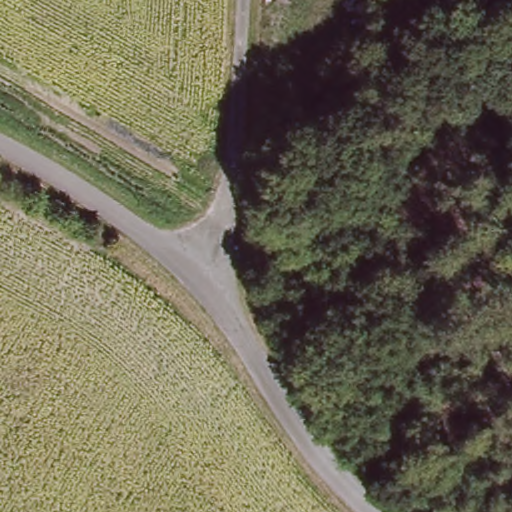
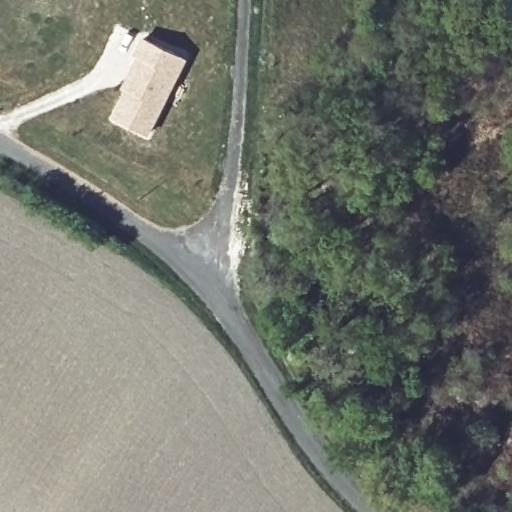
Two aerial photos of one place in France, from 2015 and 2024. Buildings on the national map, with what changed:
new [(121,87),(129,72),(137,55),(133,54),(142,37),(183,57),(145,134),(111,117),(126,89),(121,87)]

